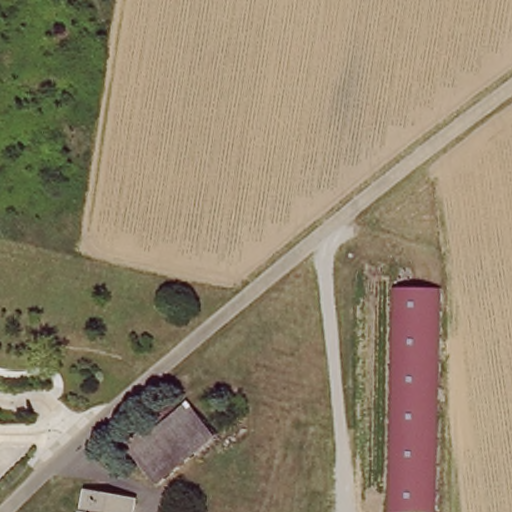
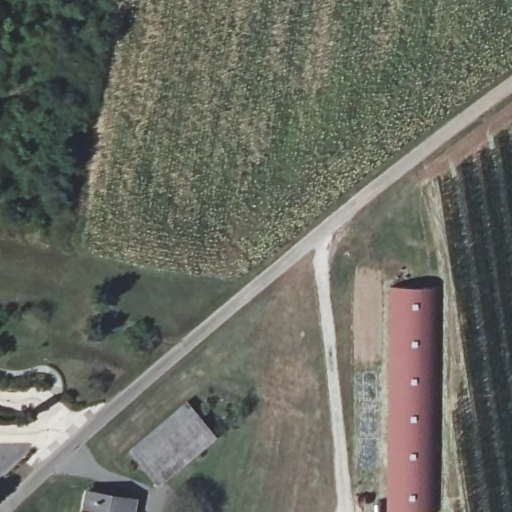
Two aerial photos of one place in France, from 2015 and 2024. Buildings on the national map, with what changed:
unchanged [(446,512),(401,512),(385,286),(430,283),(446,512)]
unchanged [(210,437),(178,461),(152,483),(126,450),(183,404),(188,410),(210,437)]
unchanged [(139,500),(136,512),(82,512),(87,488),(139,500)]

